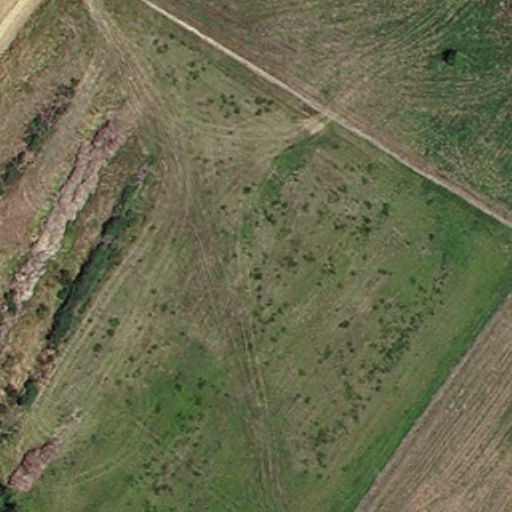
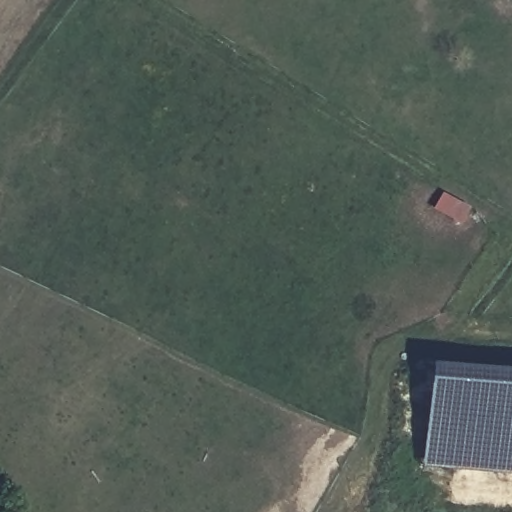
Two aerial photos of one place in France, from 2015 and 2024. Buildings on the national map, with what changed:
new [(428,361),(512,368),(512,472),(420,465),(428,361)]

